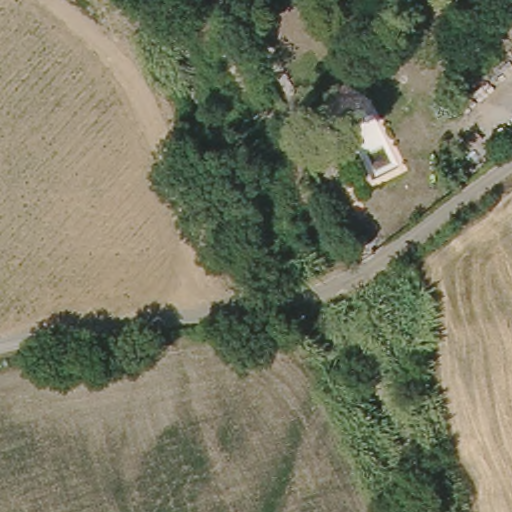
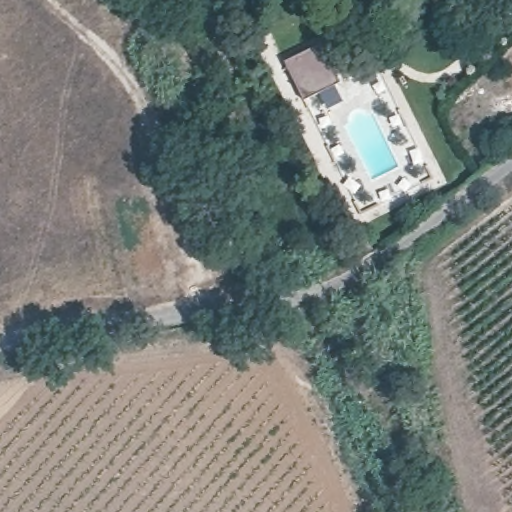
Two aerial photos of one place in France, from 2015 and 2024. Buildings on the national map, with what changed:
new [(338,80),(306,97),(286,61),(318,44),(338,80)]

